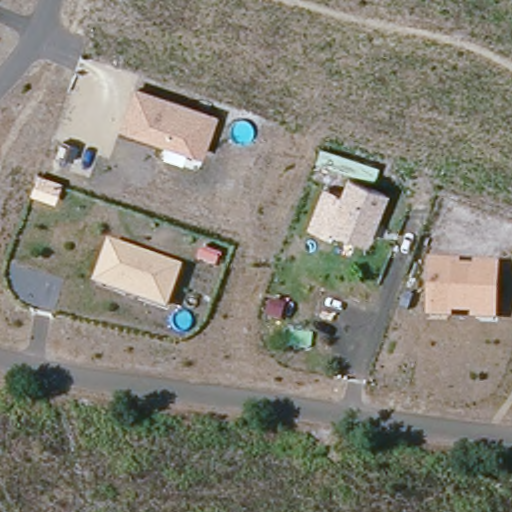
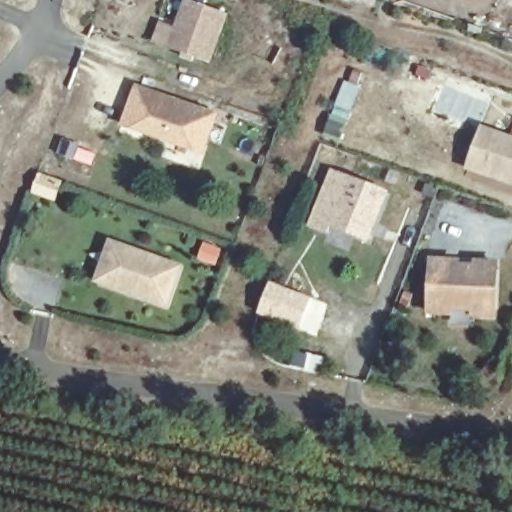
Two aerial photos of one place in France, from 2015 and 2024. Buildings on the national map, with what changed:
new [(229,14),(212,65),(150,44),(158,22),(175,27),(184,0),(192,0),(229,14)]
unchanged [(132,87),(220,113),(207,156),(119,130),(132,87)]
new [(512,136),(512,187),(465,171),(481,125),(512,136)]
unchanged [(370,242),(328,225),(347,175),(387,189),(370,242)]
unchanged [(325,236),(306,227),(322,187),(340,194),(328,225),(325,236)]
unchanged [(107,240),(182,265),(169,308),(94,283),(107,240)]
unchanged [(500,261),(497,321),(471,320),(471,311),(452,311),(452,318),(427,317),(429,257),(459,258),(459,264),(476,266),(474,260),(500,261)]
new [(258,314),(271,282),(312,298),(301,331),(258,314)]

